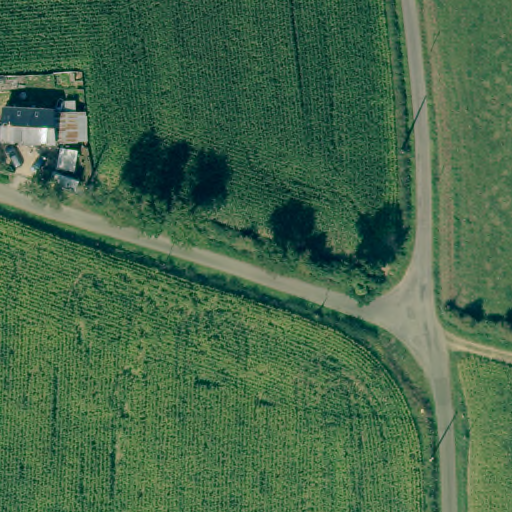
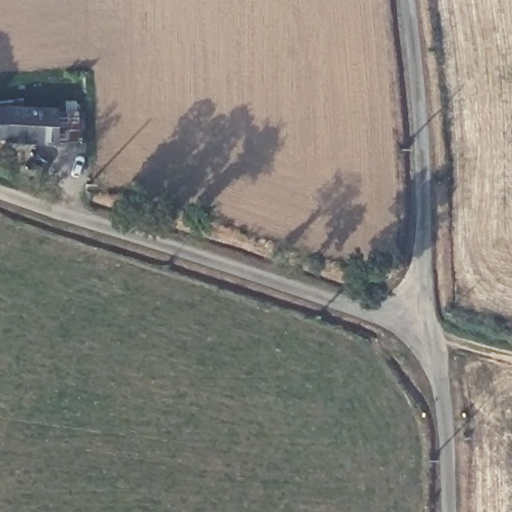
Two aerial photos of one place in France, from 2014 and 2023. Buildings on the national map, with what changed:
unchanged [(75,146),(51,145),(3,143),(4,109),(51,113),(75,116),(75,146)]

